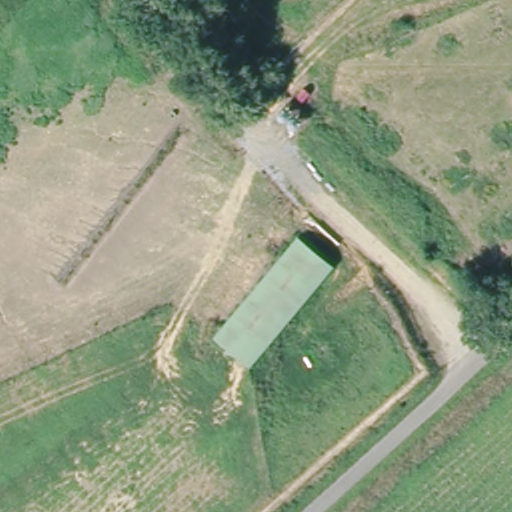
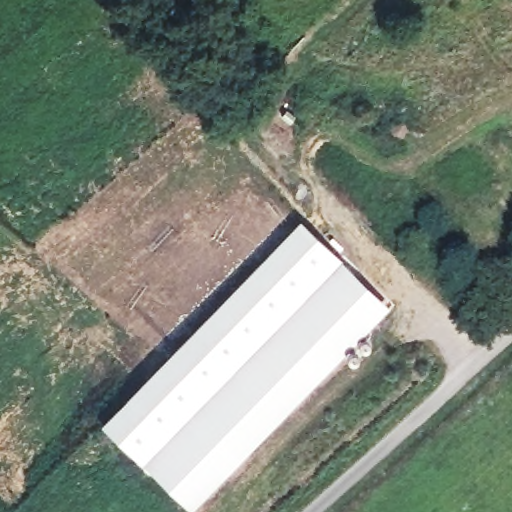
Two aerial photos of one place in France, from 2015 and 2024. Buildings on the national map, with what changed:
new [(298,220),(352,273),(320,307),(353,339),(188,508),(101,426),(298,220)]
demolished [(300,236),(336,267),(250,368),(214,336),(300,236)]
new [(320,307),(352,273),(386,305),(353,339),(320,307)]

